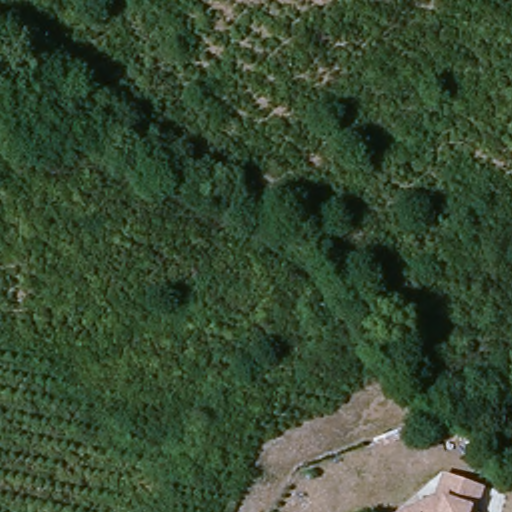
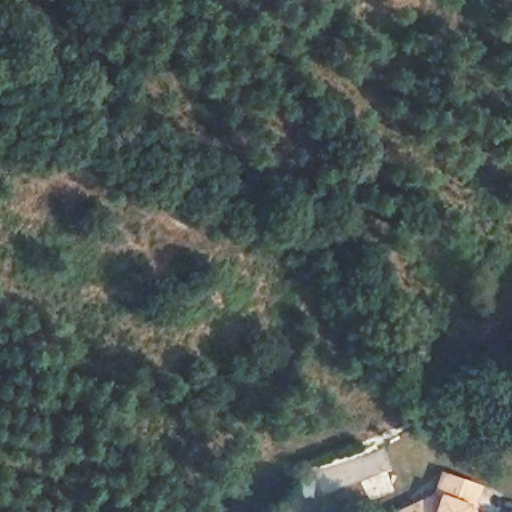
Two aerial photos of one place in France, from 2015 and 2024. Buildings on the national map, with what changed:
unchanged [(441,476),(475,489),(467,505),(470,512),(400,512),(432,496),(441,476)]

